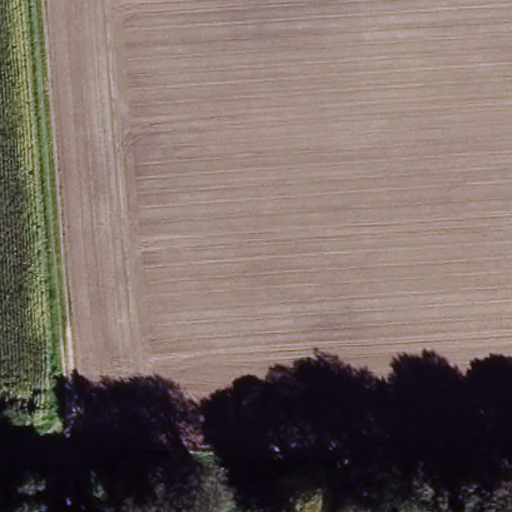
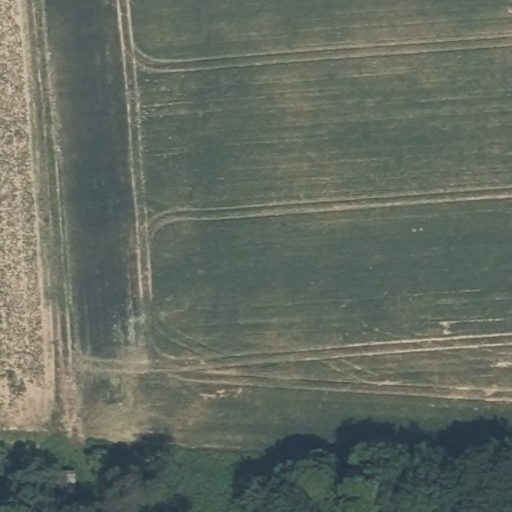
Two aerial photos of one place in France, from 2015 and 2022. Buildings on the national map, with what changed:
unchanged [(76,467),(80,503),(33,503),(34,473),(76,467)]

